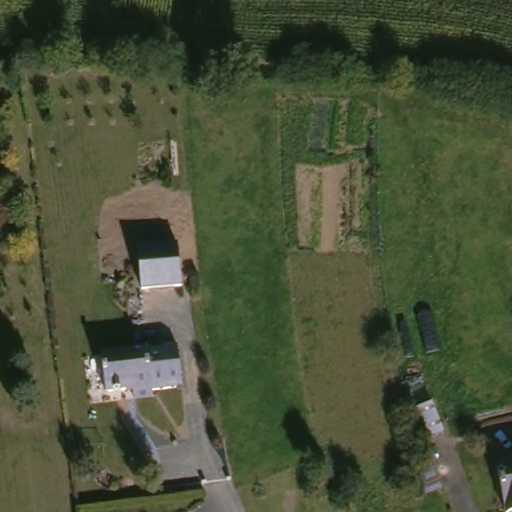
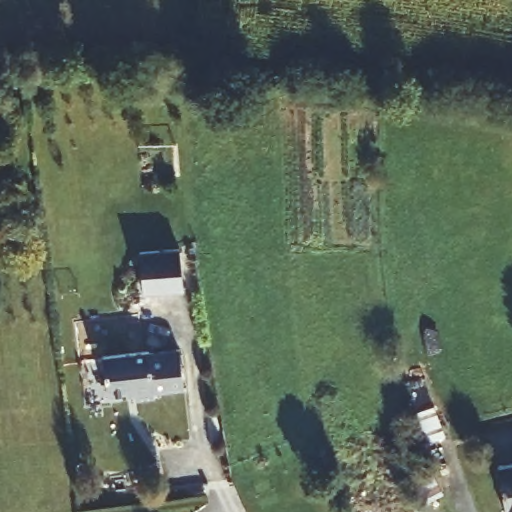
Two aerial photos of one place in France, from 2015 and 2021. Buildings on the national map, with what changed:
unchanged [(179,245),(182,289),(140,292),(139,248),(179,245)]
unchanged [(182,343),(187,383),(156,387),(157,392),(138,395),(137,385),(110,389),(105,351),(151,346),(151,347),(182,343)]
unchanged [(453,430),(433,437),(423,412),(442,403),(453,430)]
unchanged [(503,456),(512,455),(512,507),(503,456)]
unchanged [(431,497),(416,470),(437,459),(452,486),(431,497)]

